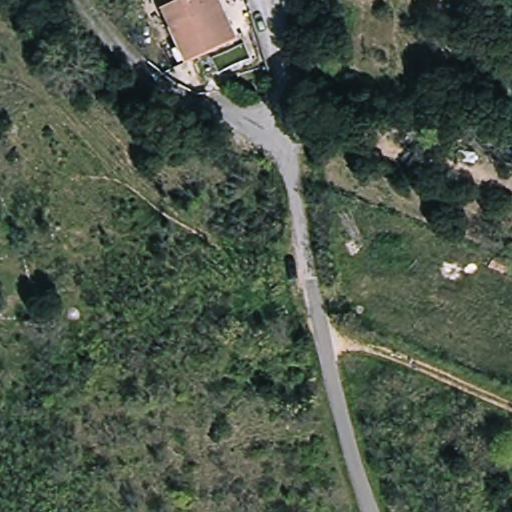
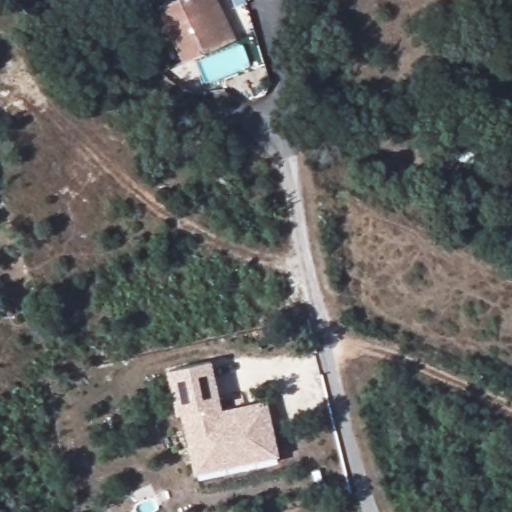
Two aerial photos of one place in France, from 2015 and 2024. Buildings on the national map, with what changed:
unchanged [(167,0),(215,0),(228,48),(176,62),(159,2),(167,0)]
new [(266,398),(280,455),(194,474),(181,413),(176,413),(166,370),(212,361),(221,404),(222,409),(266,398)]

